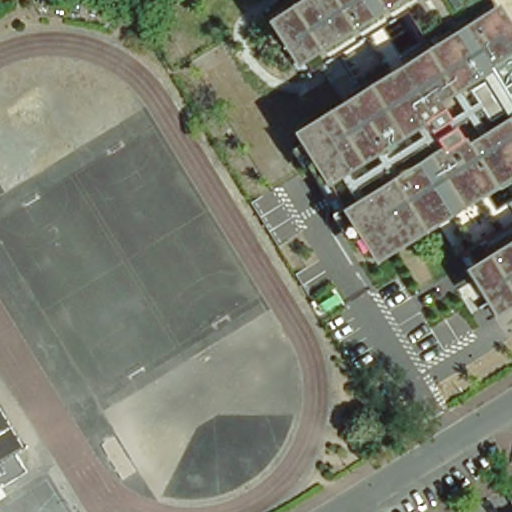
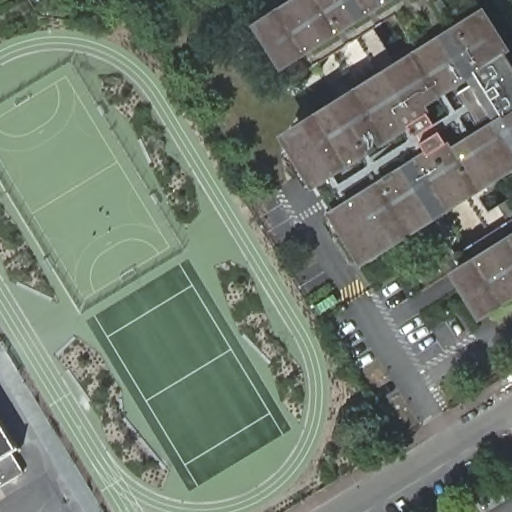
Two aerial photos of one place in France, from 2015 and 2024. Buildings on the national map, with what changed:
unchanged [(477,318),(447,271),(420,227),(359,266),(327,213),(281,134),(358,89),(336,56),(302,77),(293,60),(280,70),(250,25),(290,0),(474,0),(484,17),(512,60),(512,297),(477,318)]
unchanged [(6,457),(18,477),(0,489),(0,421),(17,450),(6,457)]

